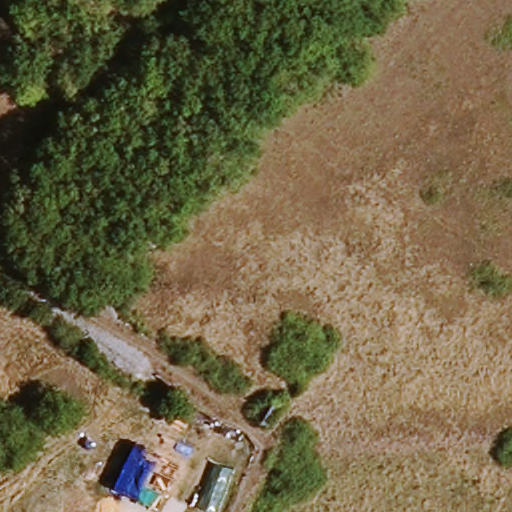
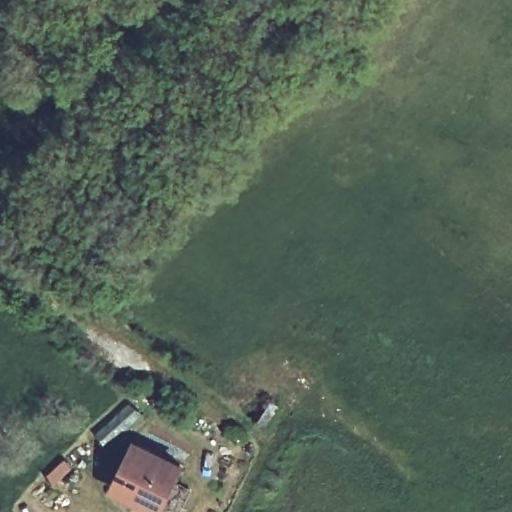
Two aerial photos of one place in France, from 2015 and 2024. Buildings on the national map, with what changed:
new [(161,512),(149,512),(109,492),(134,440),(186,464),(161,512)]

